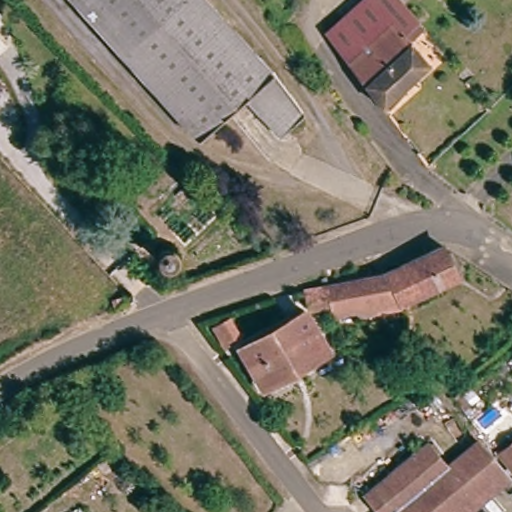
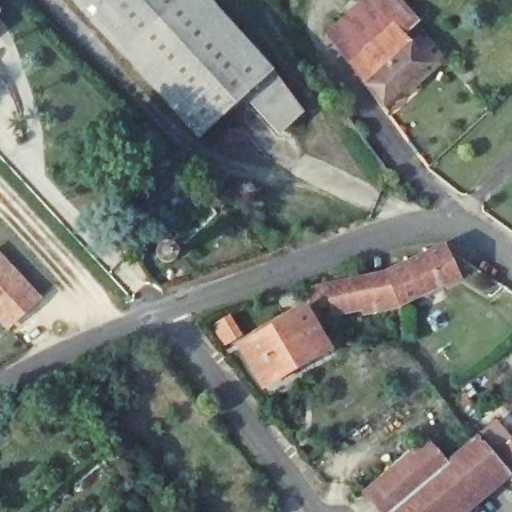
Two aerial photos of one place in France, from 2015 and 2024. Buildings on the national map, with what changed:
unchanged [(273,71),(303,112),(283,130),(249,94),(199,139),(72,0),(208,0),(273,71)]
unchanged [(383,109),(328,34),(366,0),(399,0),(418,20),(425,29),(411,42),(431,64),(383,109)]
unchanged [(1,6),(0,10),(0,5),(1,6)]
unchanged [(464,280),(408,305),(395,275),(450,250),(464,280)]
new [(0,324),(0,252),(42,299),(7,331),(0,324)]
unchanged [(382,305),(338,311),(334,283),(395,275),(408,305),(382,310),(382,305)]
unchanged [(330,284),(332,301),(309,305),(304,288),(330,284)]
unchanged [(308,308),(330,350),(284,375),(263,385),(242,345),(308,308)]
unchanged [(432,440),(451,465),(422,488),(437,508),(443,504),(449,512),(386,512),(370,492),(432,440)]
unchanged [(437,508),(422,488),(451,465),(482,440),(507,469),(455,512),(449,512),(443,504),(437,508)]
unchanged [(502,454),(512,445),(512,467),(511,465),(502,454)]

